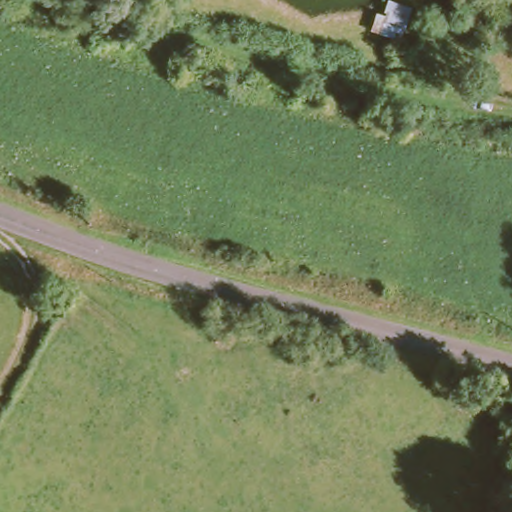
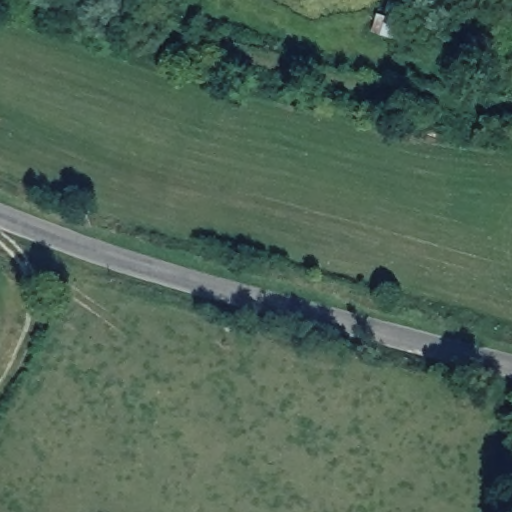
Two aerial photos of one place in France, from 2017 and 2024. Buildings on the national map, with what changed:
unchanged [(412,10),(401,42),(371,33),(377,15),(387,16),(387,14),(385,13),(389,1),(412,10)]

